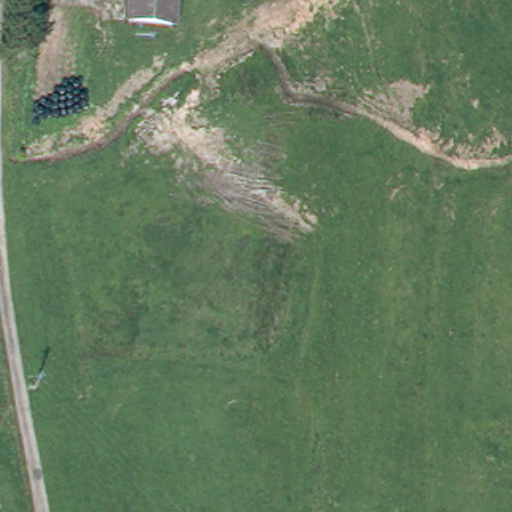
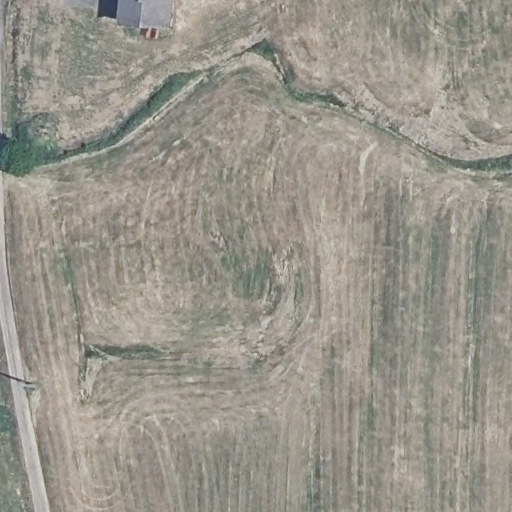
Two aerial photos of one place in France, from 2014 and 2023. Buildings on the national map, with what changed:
unchanged [(177,14),(175,23),(128,18),(130,0),(178,0),(177,14)]

